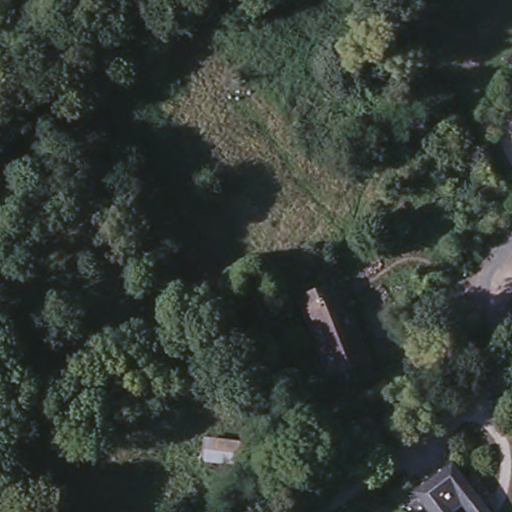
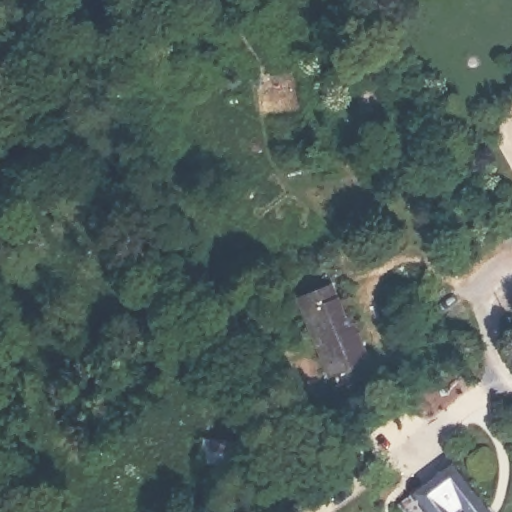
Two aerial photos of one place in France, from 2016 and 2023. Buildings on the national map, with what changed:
unchanged [(343,316),(348,314),(368,360),(329,379),(294,299),(329,283),(343,316)]
unchanged [(239,442),(238,447),(245,449),(244,456),(238,455),(236,464),(199,459),(203,438),(239,442)]
unchanged [(451,459),(485,501),(494,512),(432,512),(413,488),(451,459)]
unchanged [(432,512),(409,512),(399,500),(413,488),(432,512)]

